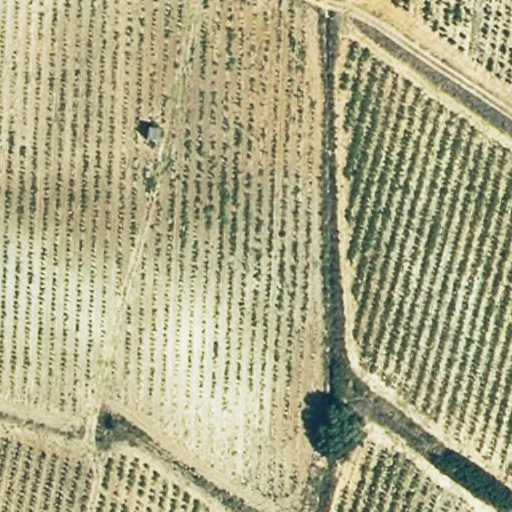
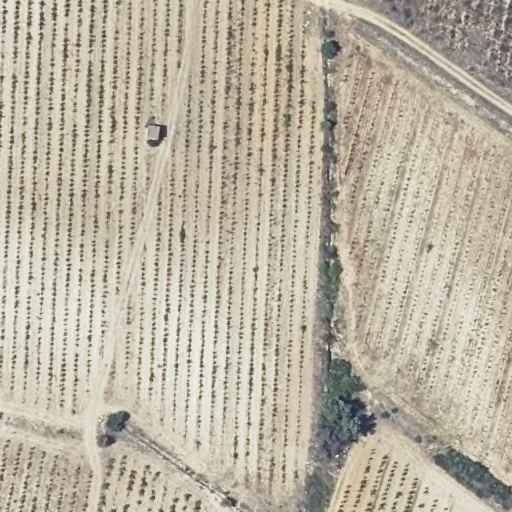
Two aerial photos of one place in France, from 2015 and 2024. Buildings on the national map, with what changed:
unchanged [(162,133),(156,148),(142,142),(148,126),(162,133)]

